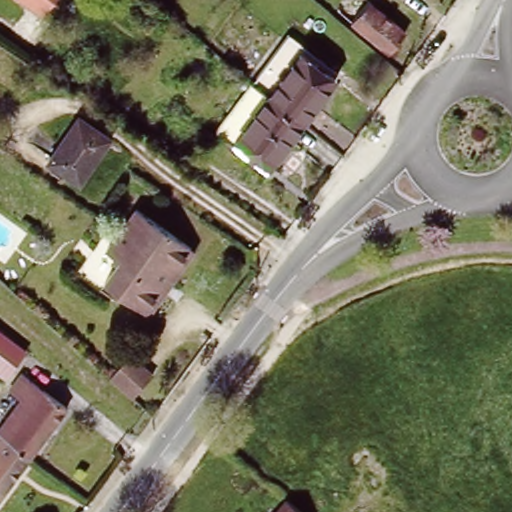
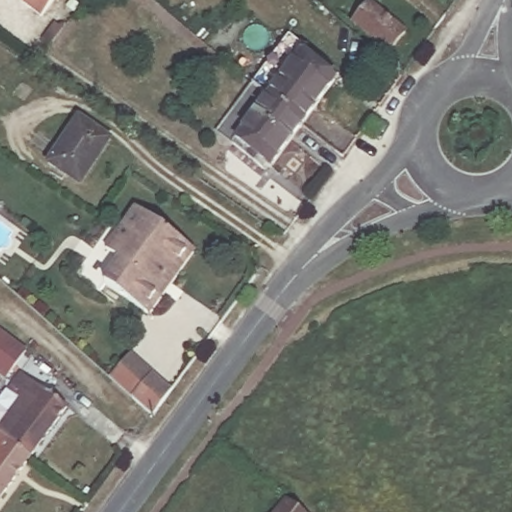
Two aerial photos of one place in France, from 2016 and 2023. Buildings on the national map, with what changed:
unchanged [(16,0),(56,0),(41,20),(16,0)]
unchanged [(396,0),(385,14),(422,46),(402,70),(348,23),(368,0),(396,0)]
unchanged [(427,0),(432,0),(430,3),(427,0)]
unchanged [(335,85),(299,136),(247,95),(283,47),(335,85)]
unchanged [(299,136),(265,184),(211,145),(247,95),(299,136)]
unchanged [(78,120),(107,140),(77,185),(48,165),(78,120)]
unchanged [(138,205),(192,245),(187,251),(146,222),(127,249),(114,237),(138,205)]
unchanged [(146,222),(187,251),(147,308),(107,279),(127,249),(146,222)]
unchanged [(3,375),(0,373),(0,337),(21,351),(3,375)]
unchanged [(148,372),(129,395),(107,375),(125,352),(148,372)]
unchanged [(8,388),(20,371),(33,380),(67,405),(33,452),(0,427),(0,425),(20,397),(8,388)]
unchanged [(0,500),(0,427),(33,452),(0,500)]
unchanged [(287,500),(301,512),(277,512),(287,500)]

